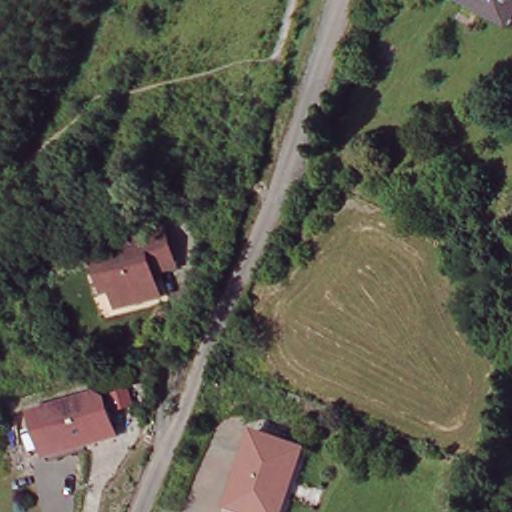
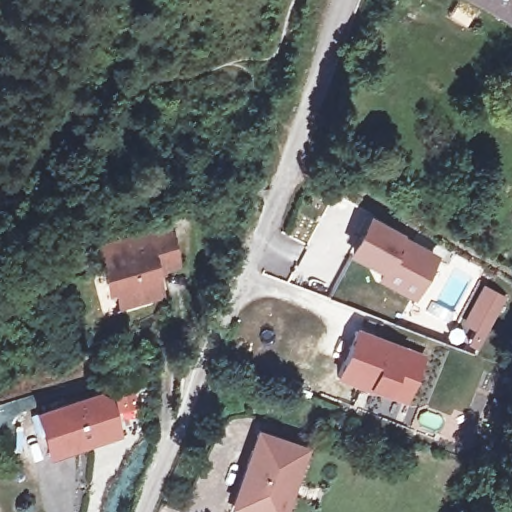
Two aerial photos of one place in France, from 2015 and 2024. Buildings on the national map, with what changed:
unchanged [(485,0),(512,0),(512,14),(485,0)]
new [(376,281),(381,272),(347,255),(367,216),(407,233),(404,237),(438,254),(414,301),(376,281)]
unchanged [(106,263),(104,243),(171,232),(179,269),(156,273),(161,295),(120,303),(118,289),(111,290),(106,263)]
new [(463,325),(484,285),(509,298),(479,351),(469,345),(476,332),(463,325)]
new [(336,377),(355,327),(426,353),(407,403),(336,377)]
unchanged [(43,428),(40,411),(100,398),(108,401),(112,405),(118,441),(58,454),(48,456),(43,428)]
unchanged [(257,436),(306,450),(285,512),(242,512),(233,509),(257,436)]

